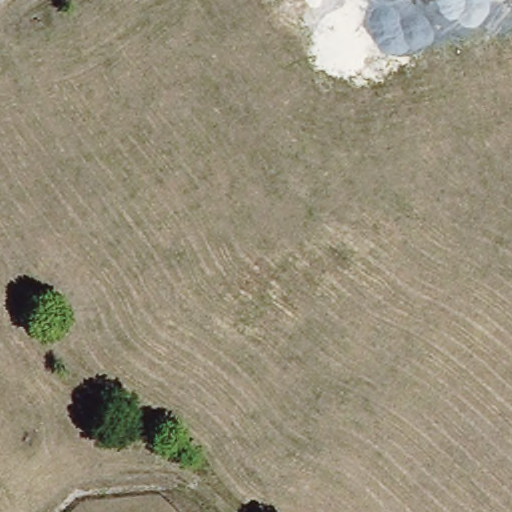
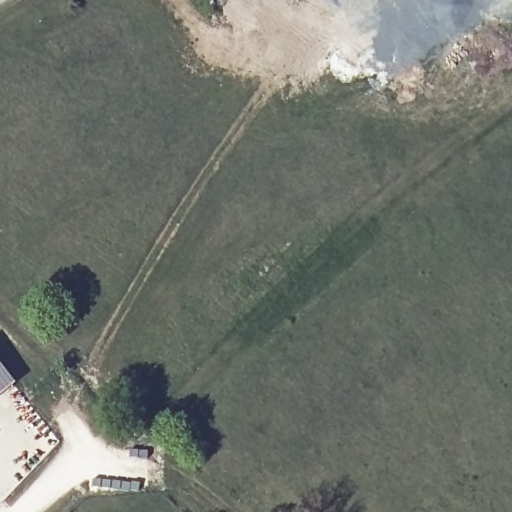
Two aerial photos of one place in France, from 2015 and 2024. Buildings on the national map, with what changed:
new [(14,383),(0,395),(0,366),(14,383)]

